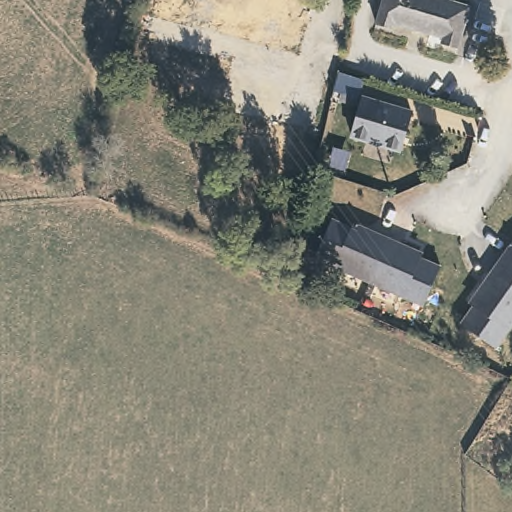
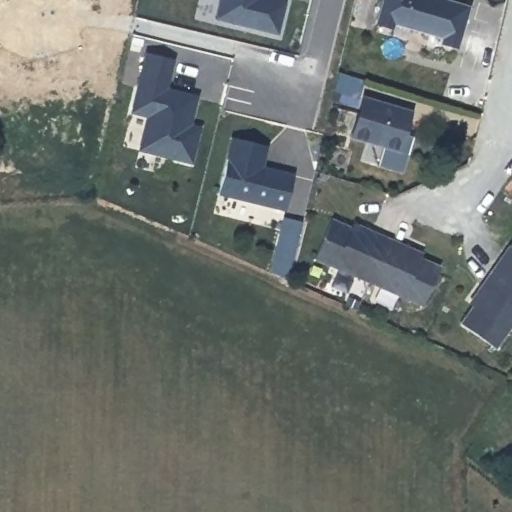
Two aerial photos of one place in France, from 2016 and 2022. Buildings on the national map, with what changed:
unchanged [(216,18),(220,0),(276,0),(285,2),(278,32),(216,18)]
unchanged [(461,49),(440,43),(441,38),(395,26),(393,31),(375,27),(382,0),(452,0),(471,5),(461,49)]
new [(147,52),(175,60),(168,89),(198,96),(192,125),(200,127),(192,163),(139,150),(148,117),(131,112),(147,52)]
unchanged [(357,135),(368,98),(413,115),(401,154),(357,135)]
new [(233,137),(269,146),(264,166),(295,174),(285,210),(219,194),(233,137)]
unchanged [(314,256),(333,217),(357,228),(359,224),(388,236),(417,250),(415,255),(439,266),(421,305),(314,256)]
unchanged [(479,301),(475,298),(494,273),(512,249),(512,330),(498,349),(463,323),(479,301)]

